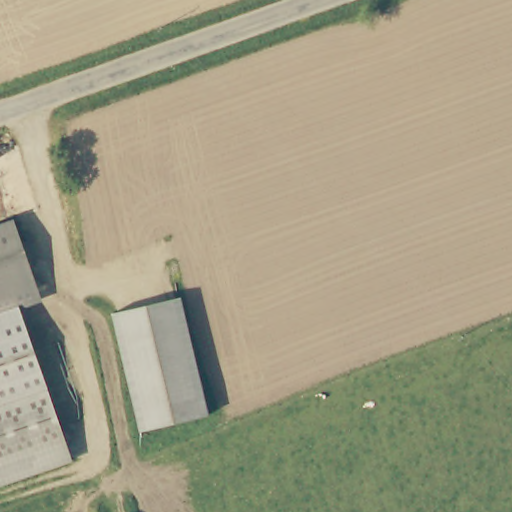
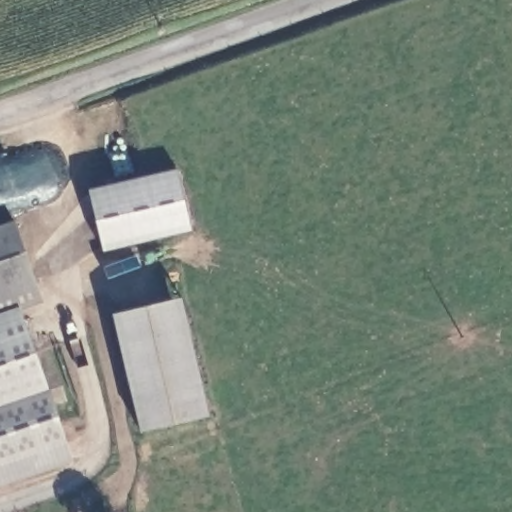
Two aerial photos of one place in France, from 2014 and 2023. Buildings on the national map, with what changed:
new [(104,251),(89,190),(177,168),(193,230),(104,251)]
unchanged [(14,215),(35,278),(0,290),(0,220),(14,215)]
unchanged [(44,302),(20,311),(73,462),(0,488),(0,290),(35,278),(44,302)]
unchanged [(139,432),(111,314),(181,298),(209,416),(139,432)]

